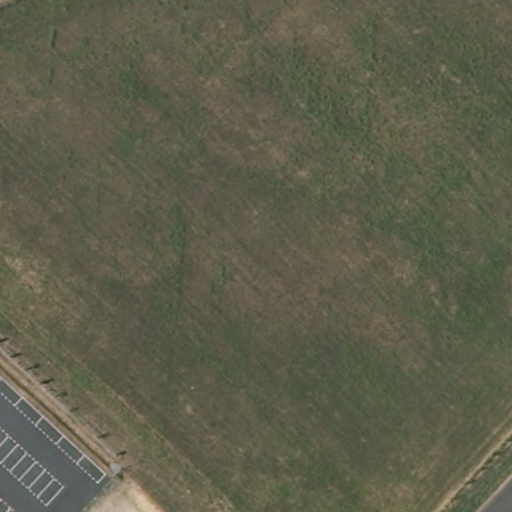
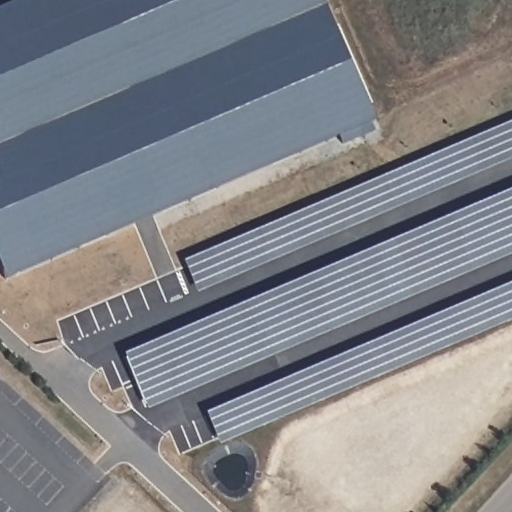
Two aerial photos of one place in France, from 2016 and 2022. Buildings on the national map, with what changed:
new [(17,0),(312,0),(365,123),(362,124),(366,132),(333,146),(330,138),(0,279),(0,7),(17,0)]

